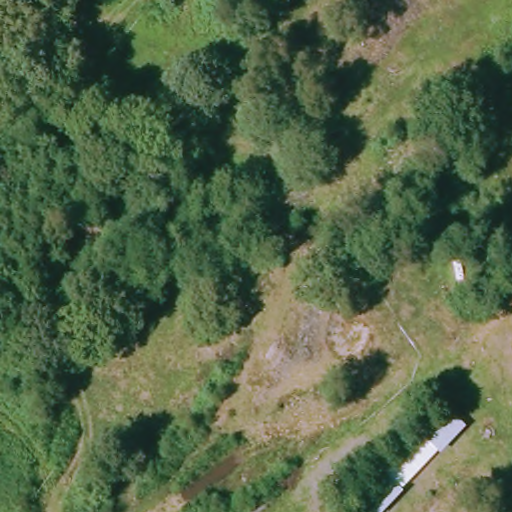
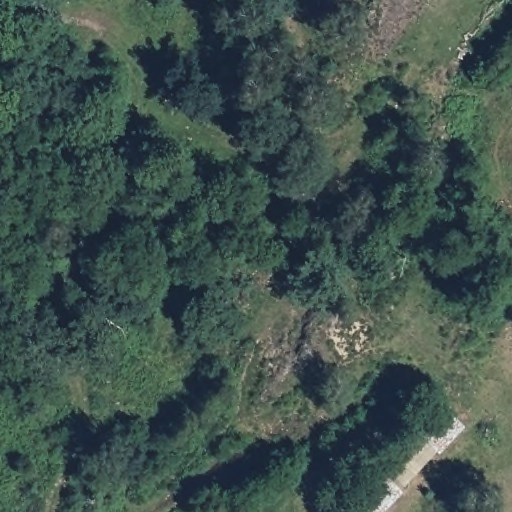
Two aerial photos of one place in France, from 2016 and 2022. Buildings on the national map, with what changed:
unchanged [(448,406),(469,425),(443,451),(405,491),(385,512),(376,512),(361,498),(385,472),(424,432),(448,406)]

